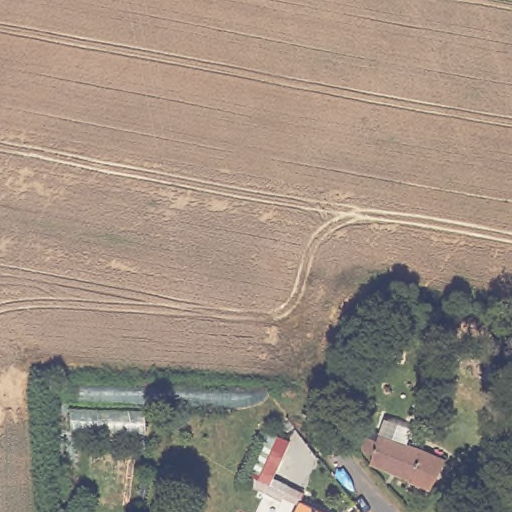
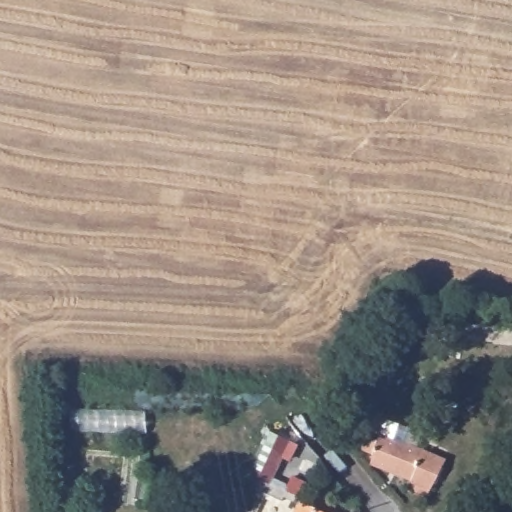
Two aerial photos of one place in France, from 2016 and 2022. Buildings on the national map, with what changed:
unchanged [(272,478),(289,487),(281,502),(241,483),(267,430),(289,439),(272,478)]
unchanged [(429,495),(426,499),(423,500),(421,500),(416,497),(415,493),(416,488),(409,485),(408,479),(369,464),(374,456),(363,451),(369,437),(378,441),(380,435),(447,461),(432,492),(429,495)]
unchanged [(320,512),(292,512),(296,502),(320,512)]

